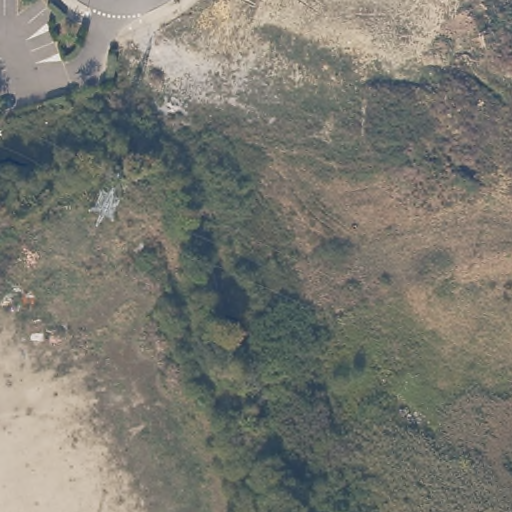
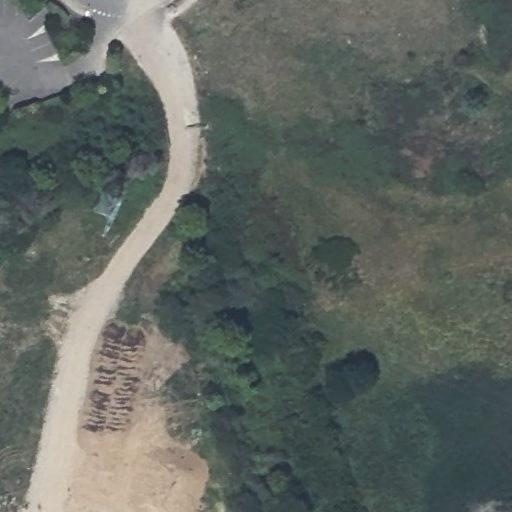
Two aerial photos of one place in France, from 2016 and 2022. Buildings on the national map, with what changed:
[]

